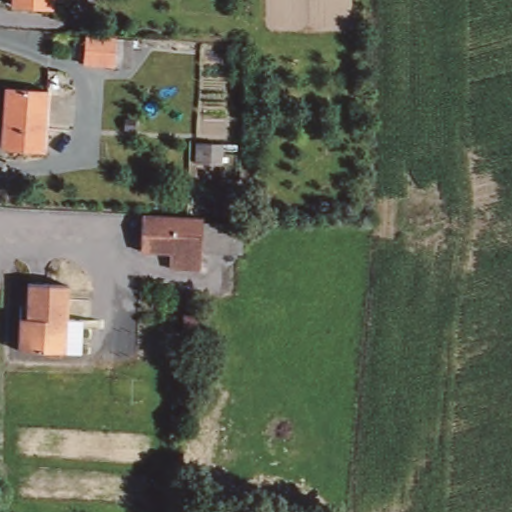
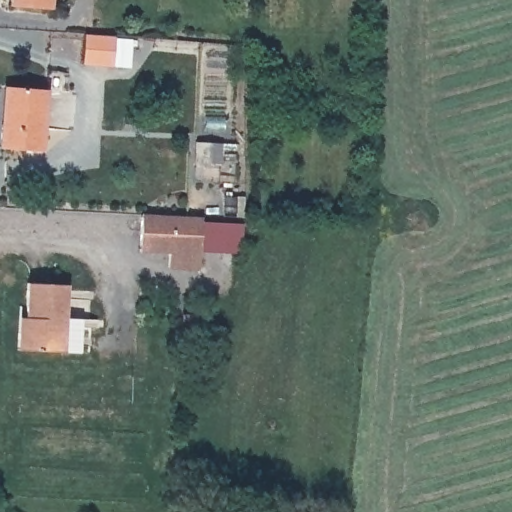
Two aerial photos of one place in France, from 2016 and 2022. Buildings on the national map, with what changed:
unchanged [(8,6),(8,0),(51,0),(51,6),(8,6)]
unchanged [(114,37),(112,67),(83,65),(84,34),(114,37)]
unchanged [(41,148),(0,146),(0,123),(3,123),(6,90),(45,92),(41,148)]
unchanged [(202,217),(200,270),(168,268),(169,252),(141,251),(143,214),(202,217)]
unchanged [(23,304),(25,279),(66,282),(64,320),(70,321),(68,352),(14,348),(17,303),(23,304)]
unchanged [(188,325),(187,347),(171,346),(171,325),(188,325)]

